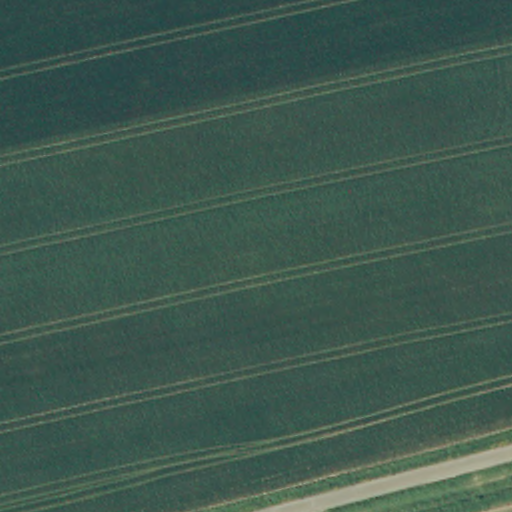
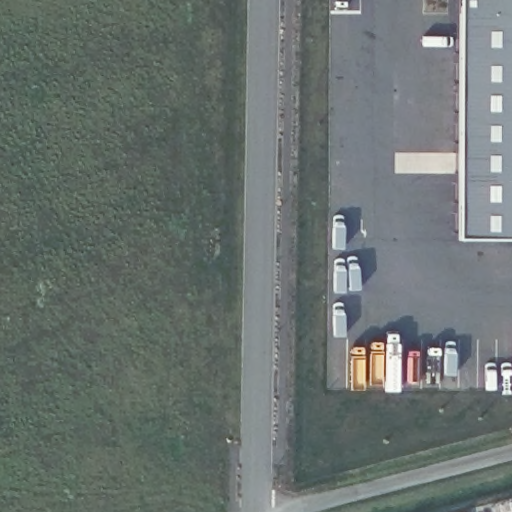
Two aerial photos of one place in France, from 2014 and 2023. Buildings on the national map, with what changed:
new [(455,239),(456,0),(512,0),(512,239),(455,239)]

